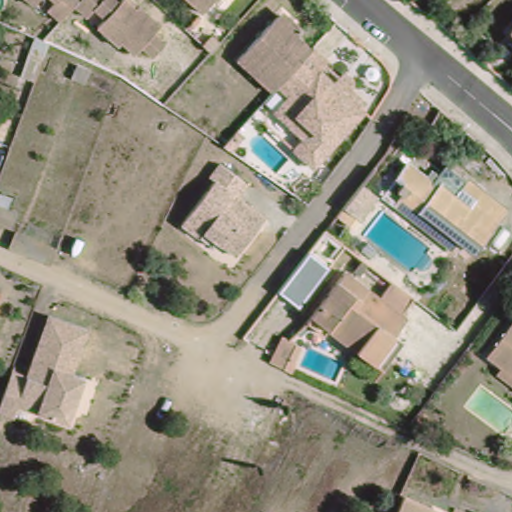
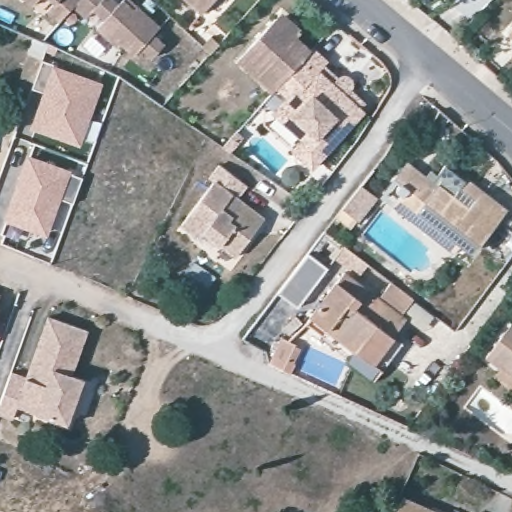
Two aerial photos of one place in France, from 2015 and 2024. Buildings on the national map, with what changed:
unchanged [(29,3),(26,0),(31,0),(29,3)]
unchanged [(71,1),(57,18),(44,7),(35,0),(72,0),(71,1)]
unchanged [(120,0),(137,0),(162,21),(155,29),(167,39),(155,53),(143,43),(137,50),(123,39),(120,43),(95,21),(84,12),(71,1),(72,0),(119,0),(120,0)]
unchanged [(201,7),(193,0),(206,0),(201,7)]
unchanged [(274,93),(237,63),(279,12),(301,29),(296,36),(311,48),(274,93)]
unchanged [(512,27),(512,34),(509,31),(512,27)]
new [(44,61),(59,66),(58,69),(102,85),(81,143),(36,127),(48,94),(33,89),(44,61)]
unchanged [(336,78),(330,86),(362,112),(346,132),(349,136),(321,170),(301,154),(310,142),(279,117),(321,65),(336,78)]
new [(239,132),(247,138),(233,154),(225,149),(239,132)]
new [(29,161),(83,180),(73,206),(59,201),(46,236),(8,221),(29,161)]
unchanged [(476,245),(462,235),(458,240),(404,198),(393,189),(407,171),(414,161),(441,181),(457,164),(507,203),(476,245)]
unchanged [(211,235),(207,241),(188,227),(221,184),(217,181),(227,168),(253,187),(243,200),(271,221),(243,259),(211,235)]
unchanged [(351,201),(367,180),(369,178),(384,190),(367,213),(351,201)]
unchanged [(319,242),(324,235),(344,250),(339,256),(335,254),(298,304),(280,291),(319,242)]
demolished [(24,238),(63,254),(56,271),(17,255),(24,238)]
unchanged [(349,270),(358,259),(366,265),(356,275),(349,270)]
unchanged [(369,362),(308,317),(342,271),(377,296),(387,282),(410,298),(399,313),(402,316),(389,336),(399,343),(383,366),(379,370),(369,362)]
unchanged [(1,297),(0,298),(0,296),(1,297)]
unchanged [(28,376),(49,316),(88,330),(72,374),(85,378),(69,423),(19,405),(14,418),(0,412),(0,405),(13,371),(28,376)]
unchanged [(512,318),(512,380),(499,370),(504,363),(489,351),(512,318)]
unchanged [(271,364),(282,338),(296,345),(303,347),(296,363),(292,374),(271,364)]
unchanged [(437,512),(399,512),(406,498),(437,512)]

